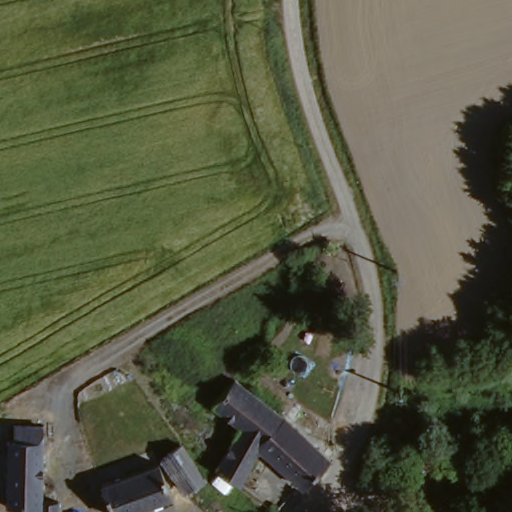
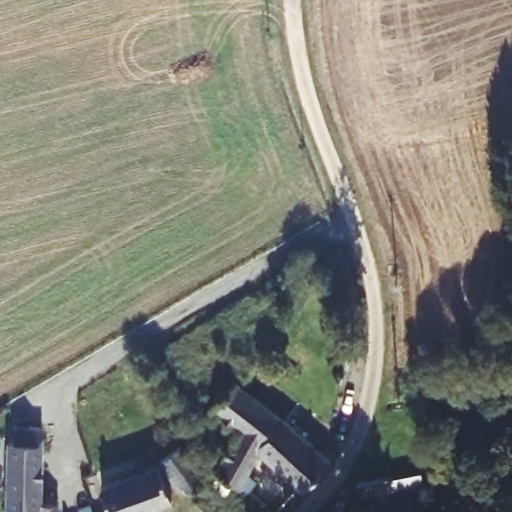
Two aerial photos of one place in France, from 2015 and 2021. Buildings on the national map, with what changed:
unchanged [(231,447),(246,427),(219,402),(240,373),(248,364),(265,380),(260,390),(287,414),(275,429),(262,446),(259,449),(244,482),(221,464),(231,447)]
unchanged [(331,453),(330,458),(306,482),(262,446),(275,429),(287,414),(331,453)]
unchanged [(42,506),(12,506),(12,438),(17,438),(18,424),(45,424),(45,498),(61,498),(61,512),(43,512),(42,506)]
unchanged [(186,441),(209,476),(190,491),(165,457),(186,441)]
unchanged [(95,484),(107,480),(162,459),(175,494),(124,512),(118,512),(115,502),(102,505),(95,484)]
unchanged [(391,489),(360,496),(357,483),(390,476),(391,489)]

